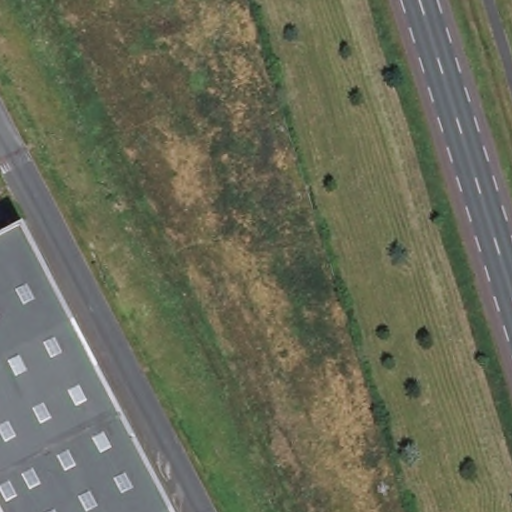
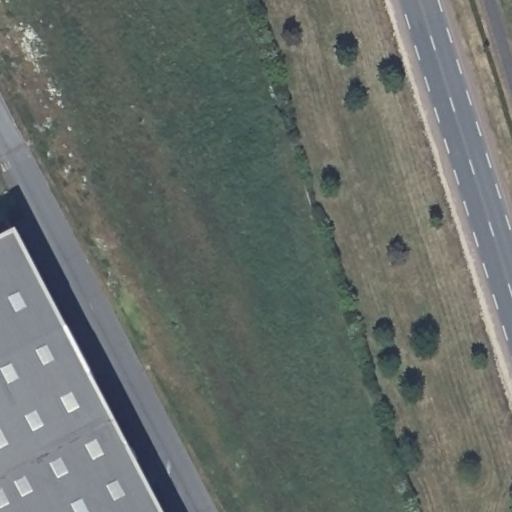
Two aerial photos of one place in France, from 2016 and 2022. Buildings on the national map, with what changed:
unchanged [(21,239),(162,512),(0,512),(0,250),(21,239)]

